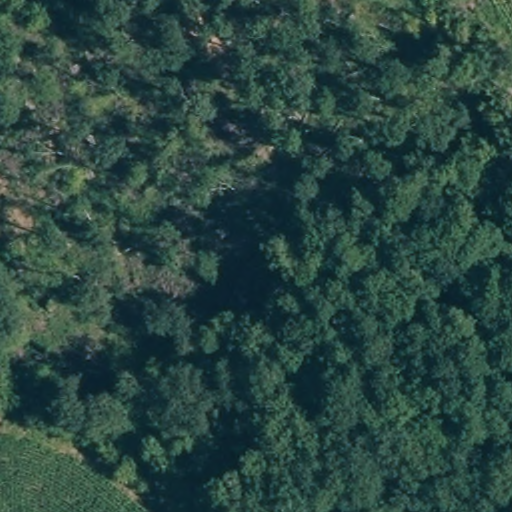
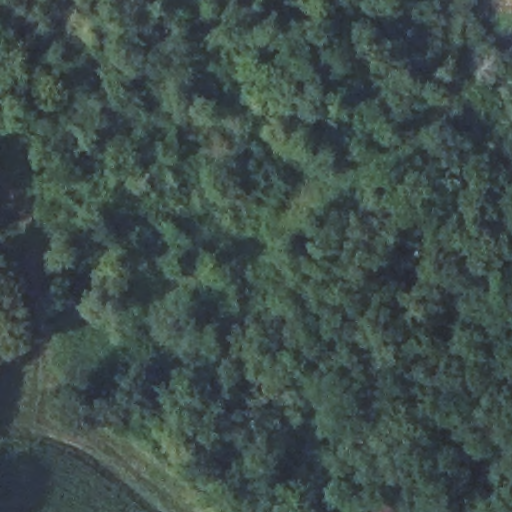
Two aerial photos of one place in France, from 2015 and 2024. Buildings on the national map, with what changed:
[]

